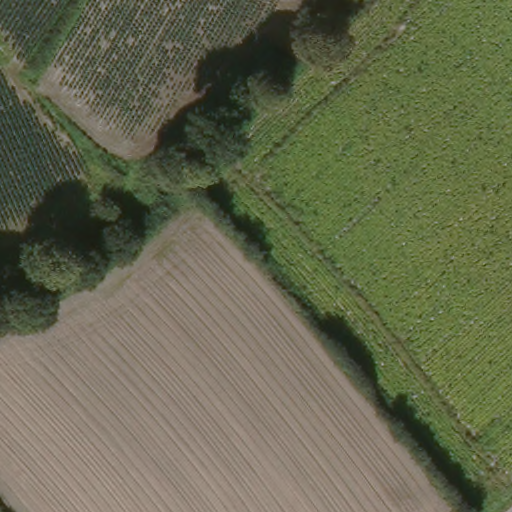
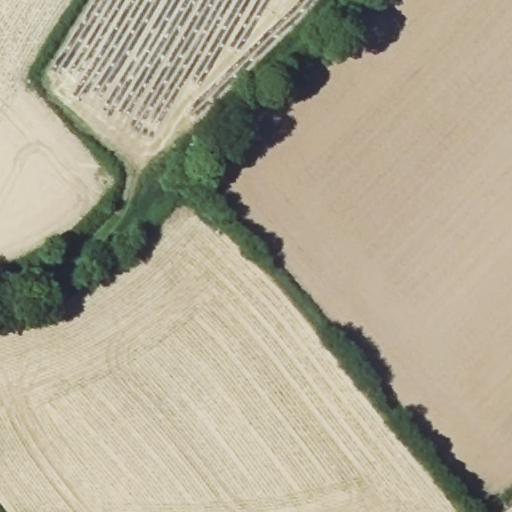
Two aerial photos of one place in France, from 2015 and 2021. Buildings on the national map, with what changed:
[]

